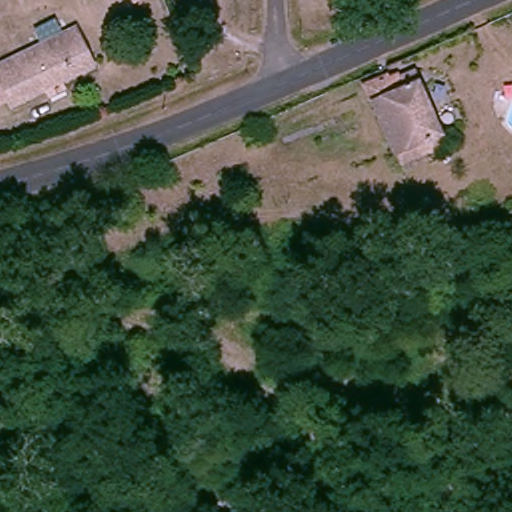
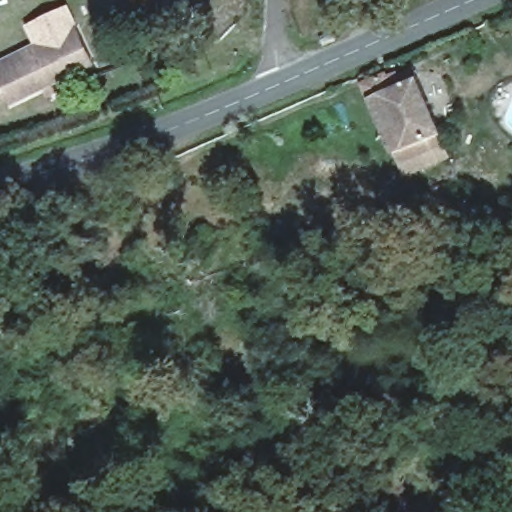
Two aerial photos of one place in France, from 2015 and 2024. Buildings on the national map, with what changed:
unchanged [(134,0),(141,0),(135,4),(134,0)]
unchanged [(54,98),(50,91),(14,106),(11,99),(0,104),(0,74),(0,73),(0,67),(77,32),(97,69),(61,86),(64,94),(54,98)]
unchanged [(363,85),(385,76),(393,95),(419,83),(440,139),(394,156),(363,85)]

